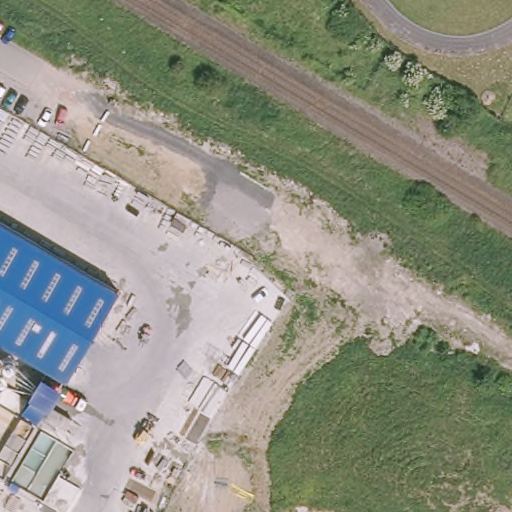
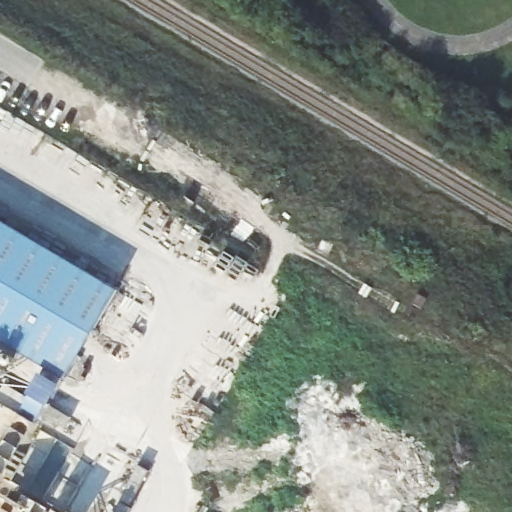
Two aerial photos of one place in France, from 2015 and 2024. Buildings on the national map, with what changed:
unchanged [(0,220),(118,288),(65,380),(0,342),(0,220)]

